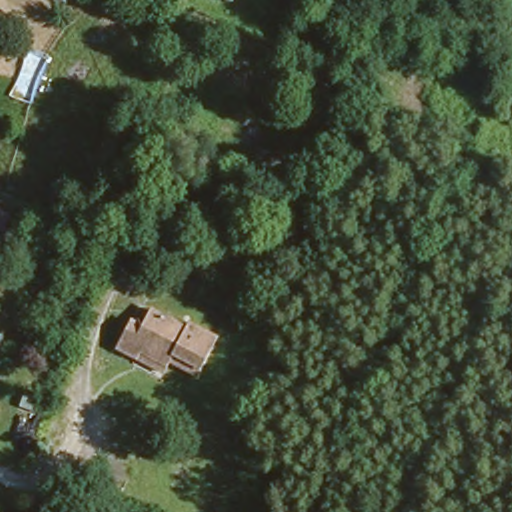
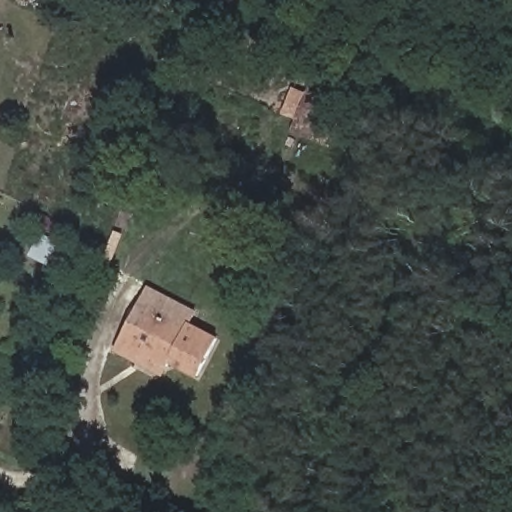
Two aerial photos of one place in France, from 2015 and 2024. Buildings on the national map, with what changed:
unchanged [(345,116),(333,143),(295,127),(307,100),(345,116)]
unchanged [(135,354),(108,338),(123,313),(132,319),(143,301),(173,318),(178,310),(215,331),(190,373),(163,358),(158,367),(135,354)]

